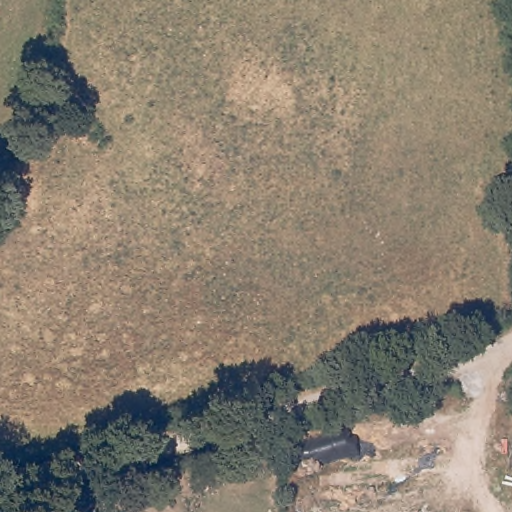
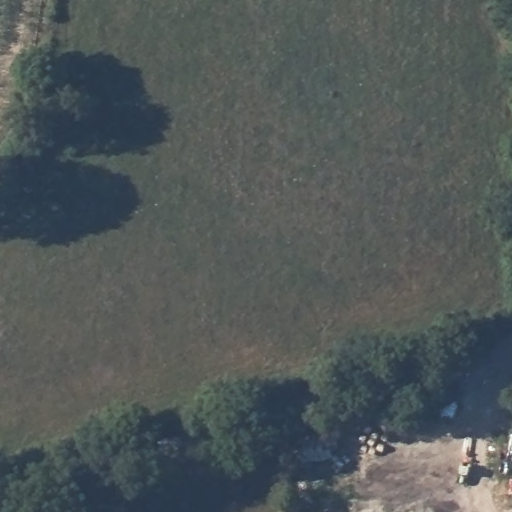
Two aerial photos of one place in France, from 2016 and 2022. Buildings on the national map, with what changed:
[]

